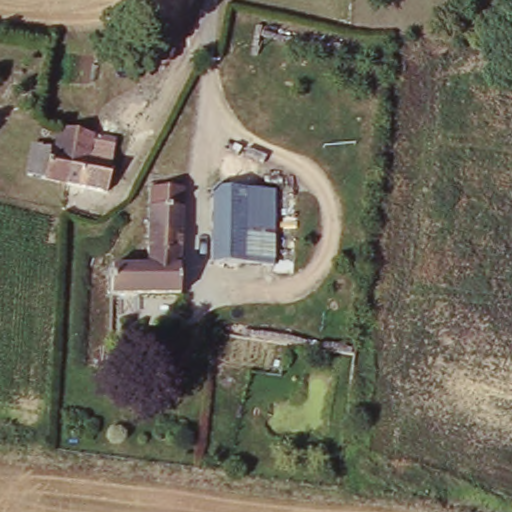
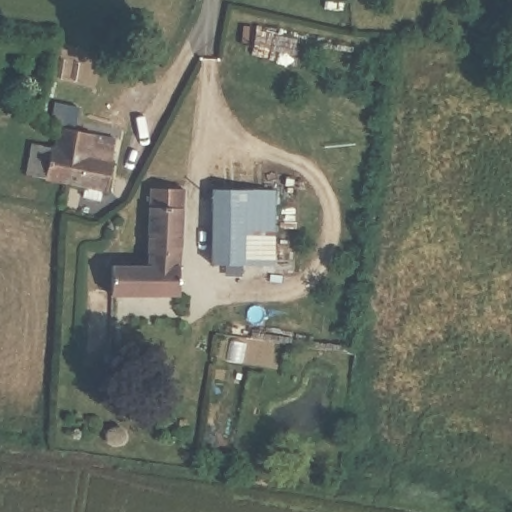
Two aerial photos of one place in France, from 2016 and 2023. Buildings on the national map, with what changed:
unchanged [(31,178),(35,148),(56,151),(60,125),(79,128),(70,184),(31,178)]
unchanged [(97,131),(95,146),(114,151),(106,189),(70,184),(79,128),(97,131)]
unchanged [(214,269),(215,192),(245,194),(275,195),(272,270),(214,269)]
unchanged [(145,275),(150,196),(184,198),(179,306),(111,303),(114,274),(145,275)]
unchanged [(273,343),(275,331),(292,333),(292,344),(273,343)]
unchanged [(116,356),(114,368),(104,366),(104,355),(116,356)]

